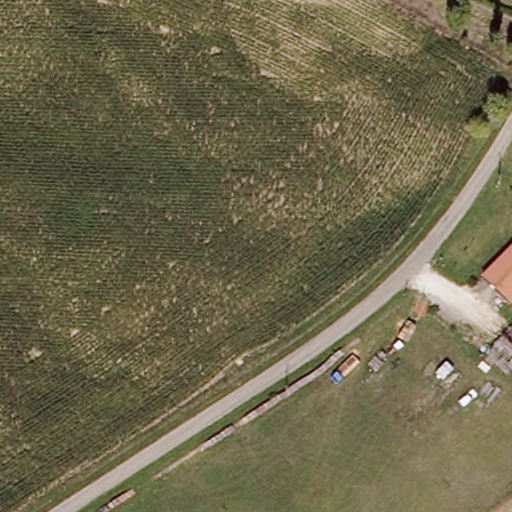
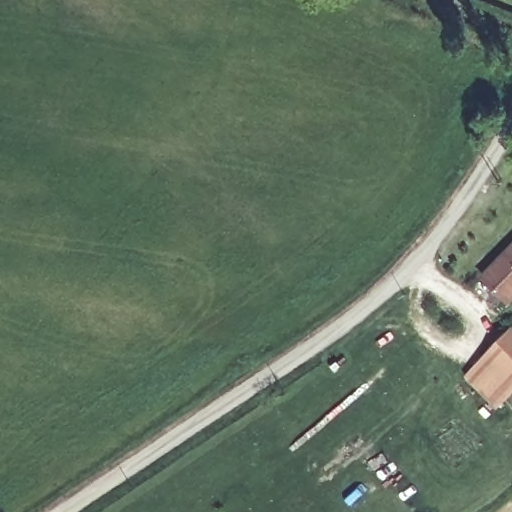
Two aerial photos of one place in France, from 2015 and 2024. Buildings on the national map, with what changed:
unchanged [(512,245),(512,303),(510,304),(482,277),(512,245)]
new [(499,407),(464,374),(512,327),(512,394),(499,407)]

